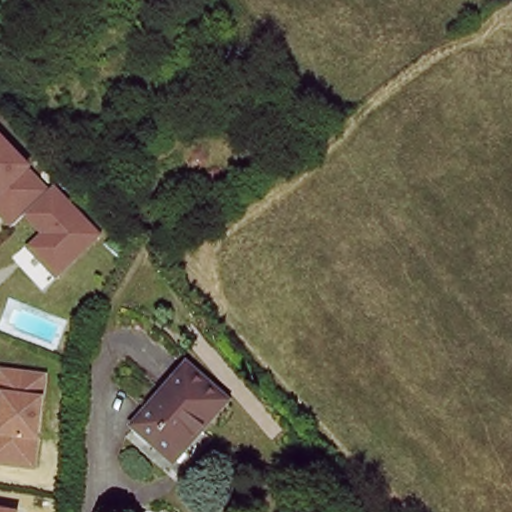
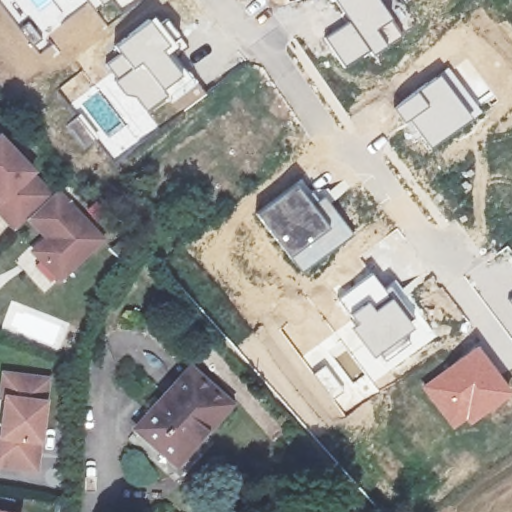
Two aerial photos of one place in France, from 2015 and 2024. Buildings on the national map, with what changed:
new [(69,2),(68,0),(71,0),(69,2)]
new [(94,8),(87,0),(107,0),(94,8)]
new [(127,4),(124,0),(134,0),(127,4)]
new [(400,34),(371,54),(369,50),(347,20),(333,0),(379,0),(400,34)]
new [(118,52),(113,46),(153,15),(157,22),(165,16),(184,42),(166,54),(182,76),(163,90),(166,95),(146,112),(134,97),(126,97),(115,80),(105,64),(118,52)]
new [(347,20),(369,50),(343,67),(322,37),(347,20)]
new [(392,107),(437,73),(449,65),(482,111),(471,119),(430,149),(392,107)]
unchanged [(5,138),(38,173),(36,175),(57,198),(55,200),(34,220),(22,232),(0,210),(0,137),(3,140),(5,138)]
new [(302,178),(317,195),(323,190),(353,234),(301,272),(255,214),(302,178)]
unchanged [(53,239),(34,220),(55,200),(57,198),(62,193),(107,241),(65,281),(45,260),(38,253),(53,239)]
new [(372,273),(384,288),(412,326),(374,359),(345,329),(353,323),(337,299),(372,273)]
new [(412,326),(384,288),(396,279),(436,337),(385,373),(374,359),(412,326)]
new [(512,296),(512,306),(508,299),(512,296)]
new [(476,344),(512,393),(468,425),(466,423),(453,431),(420,387),(476,344)]
unchanged [(193,371),(233,406),(181,465),(141,428),(193,371)]
unchanged [(11,399),(6,399),(9,375),(53,381),(41,472),(2,467),(0,467),(0,443),(5,443),(11,399)]
unchanged [(0,512),(0,511),(7,512),(0,512)]

